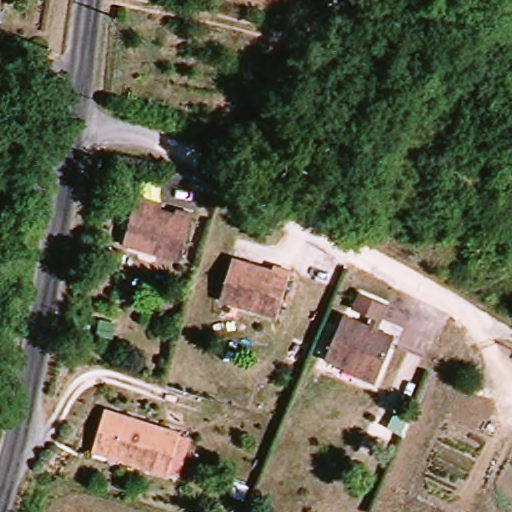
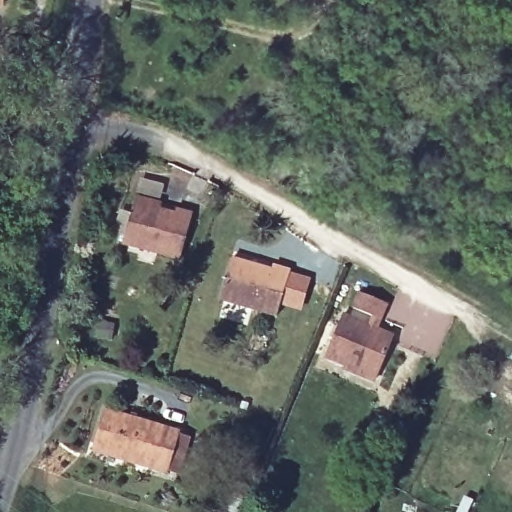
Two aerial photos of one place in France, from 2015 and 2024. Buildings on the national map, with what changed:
unchanged [(0,13),(0,0),(7,0),(6,14),(0,13)]
unchanged [(120,245),(131,208),(174,220),(175,214),(195,220),(183,263),(120,245)]
unchanged [(292,275),(280,318),(226,302),(236,267),(278,279),(279,270),(292,275)]
unchanged [(360,299),(391,311),(385,332),(397,336),(380,388),(342,375),(343,369),(329,363),(346,318),(368,327),(371,319),(355,313),(360,299)]
unchanged [(98,450),(106,418),(183,438),(173,477),(126,465),(128,458),(98,450)]

